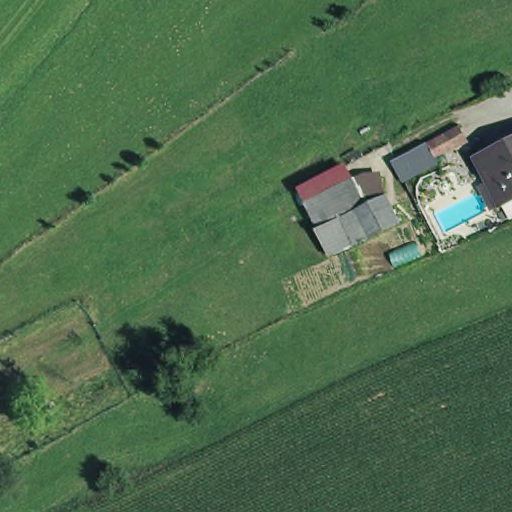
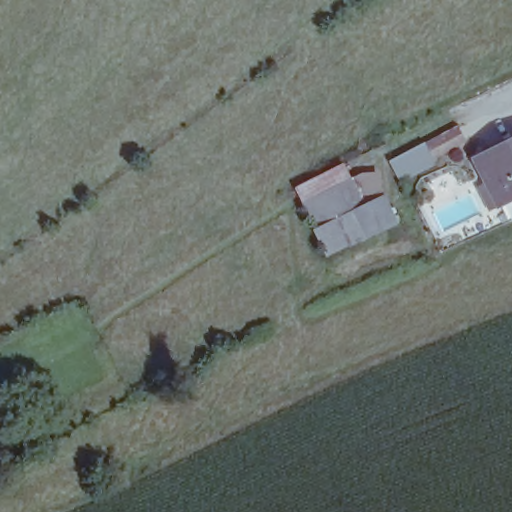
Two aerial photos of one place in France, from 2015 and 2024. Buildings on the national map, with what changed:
unchanged [(512,192),(507,195),(484,155),(512,141),(512,192)]
unchanged [(328,256),(316,226),(312,229),(297,200),(369,168),(392,224),(328,256)]

